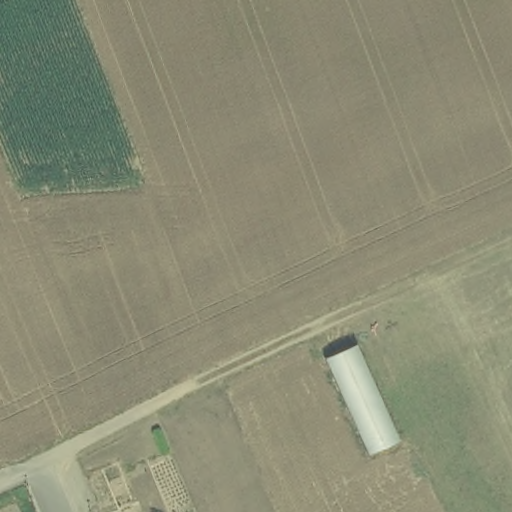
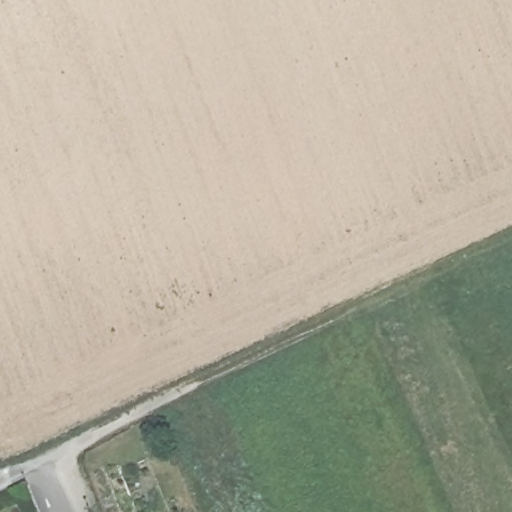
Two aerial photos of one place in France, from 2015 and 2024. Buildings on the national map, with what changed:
demolished [(402,440),(370,453),(324,355),(357,340),(402,440)]

